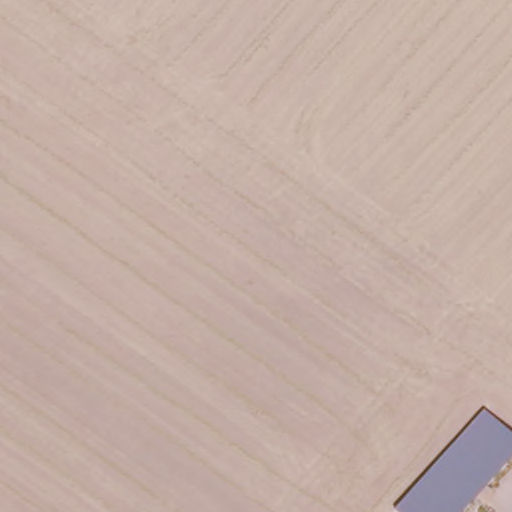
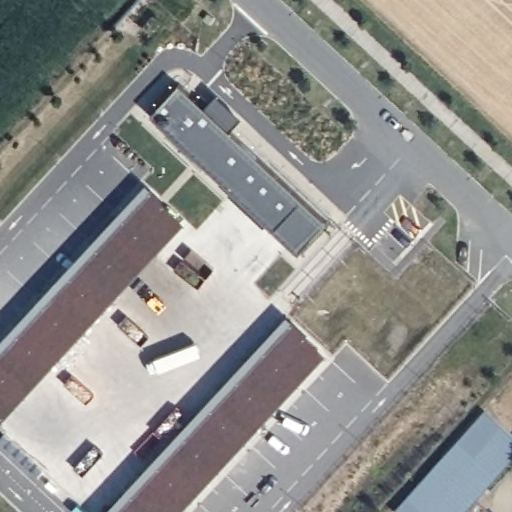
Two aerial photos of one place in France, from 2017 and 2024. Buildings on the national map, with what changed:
new [(201,112),(214,100),(238,122),(225,135),(322,228),(294,258),(149,120),(175,89),(201,112)]
new [(181,229),(0,425),(0,345),(142,190),(181,229)]
new [(183,512),(109,512),(285,319),(325,358),(183,512)]
unchanged [(396,512),(392,509),(484,408),(512,432),(512,452),(456,512),(396,512)]

